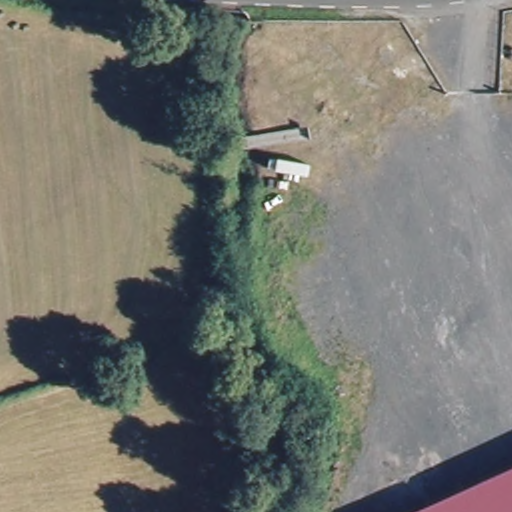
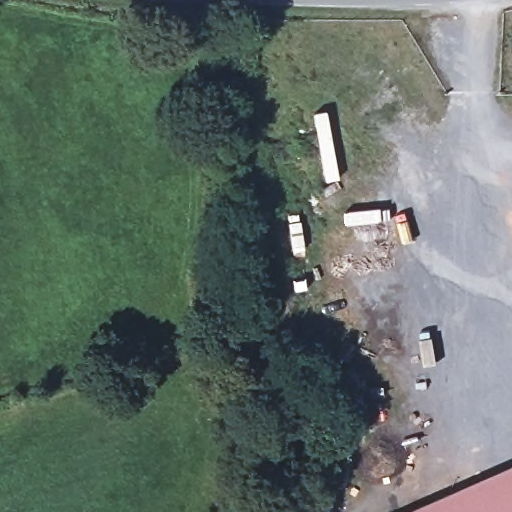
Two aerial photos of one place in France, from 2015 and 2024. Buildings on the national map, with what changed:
unchanged [(512,512),(403,512),(512,465),(512,512)]

